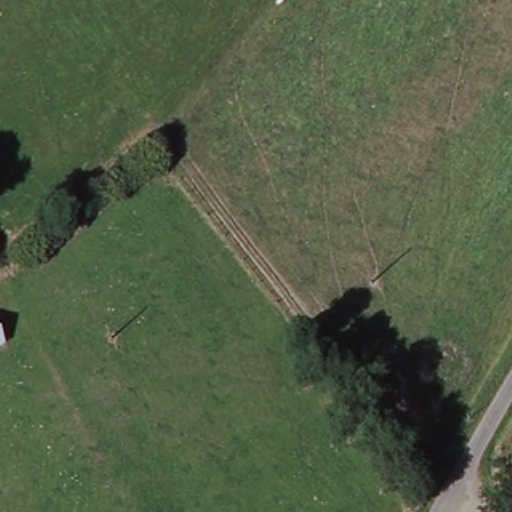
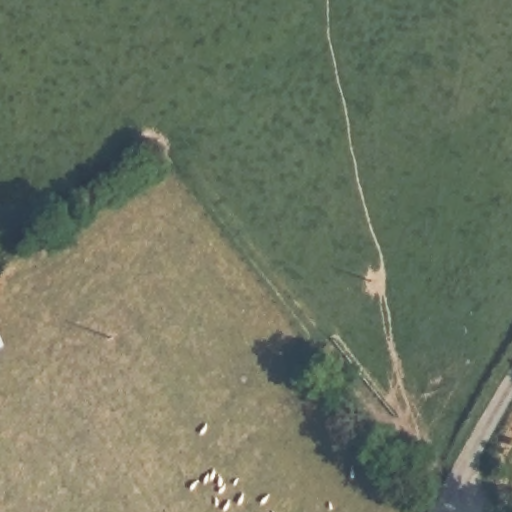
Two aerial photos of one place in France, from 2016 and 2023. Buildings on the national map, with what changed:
unchanged [(7,343),(0,347),(0,328),(7,343)]

